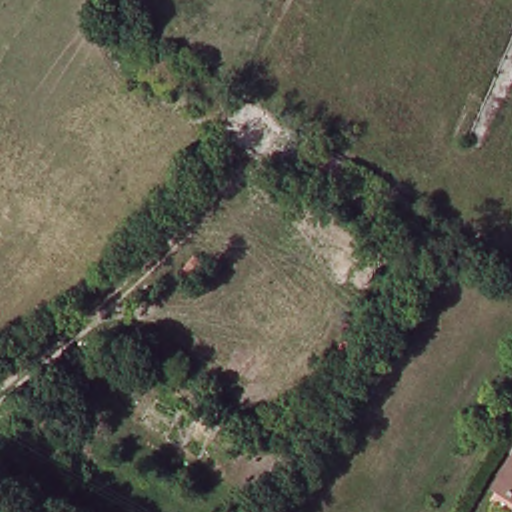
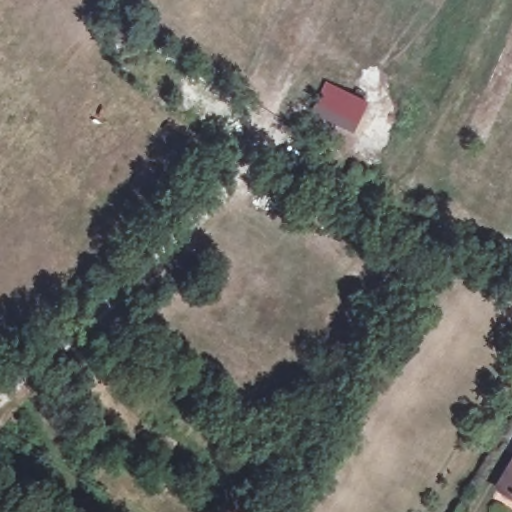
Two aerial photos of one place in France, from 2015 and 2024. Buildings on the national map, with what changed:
new [(310,114),(326,81),(369,101),(353,134),(310,114)]
unchanged [(512,470),(512,488),(504,483),(512,470)]

